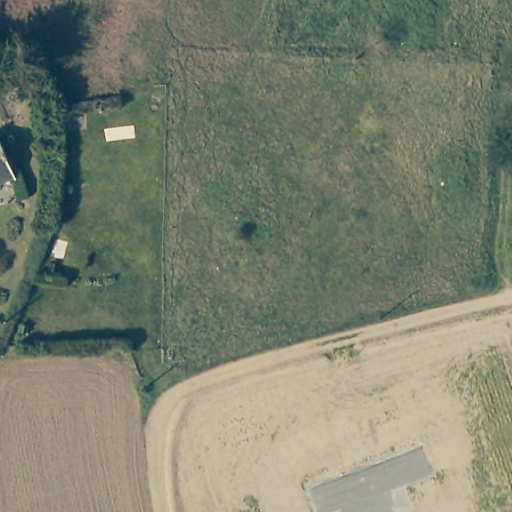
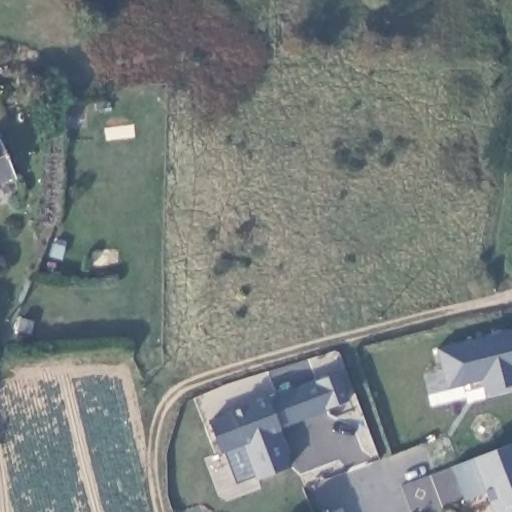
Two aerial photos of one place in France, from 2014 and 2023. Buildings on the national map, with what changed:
unchanged [(0,182),(0,142),(14,176),(0,182)]
new [(486,394),(482,382),(448,390),(436,348),(508,330),(512,345),(512,385),(486,394)]
new [(348,403),(278,431),(290,469),(256,482),(242,446),(220,453),(208,420),(267,399),(338,373),(348,403)]
new [(474,458),(512,443),(512,512),(493,512),(474,458)]

